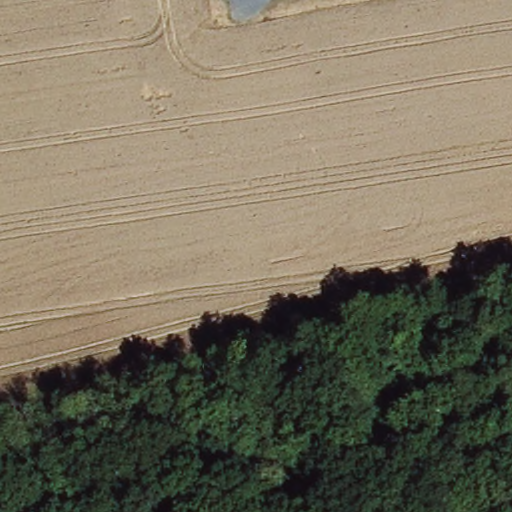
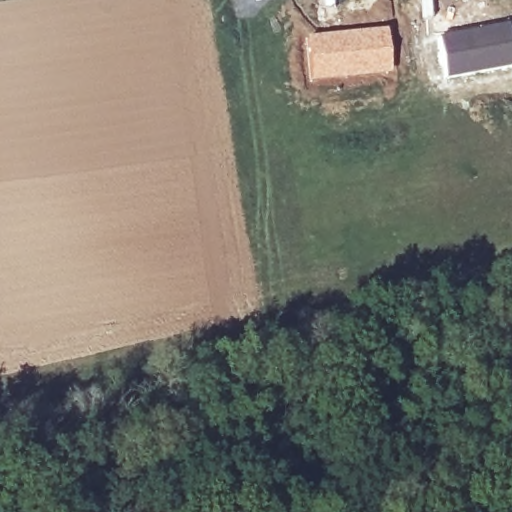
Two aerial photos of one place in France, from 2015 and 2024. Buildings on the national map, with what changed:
new [(508,23),(512,47),(512,66),(447,78),(439,36),(508,23)]
new [(387,27),(391,72),(309,82),(304,37),(387,27)]

